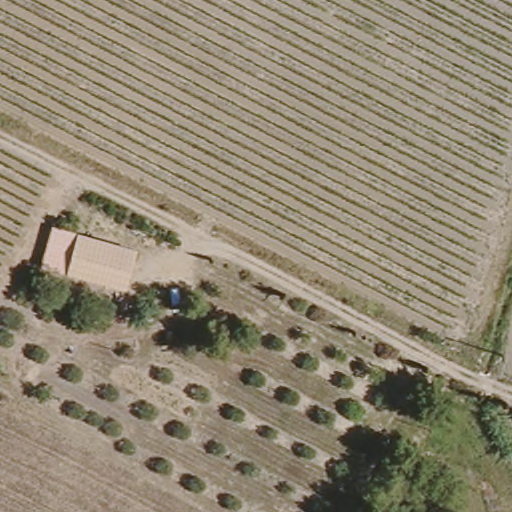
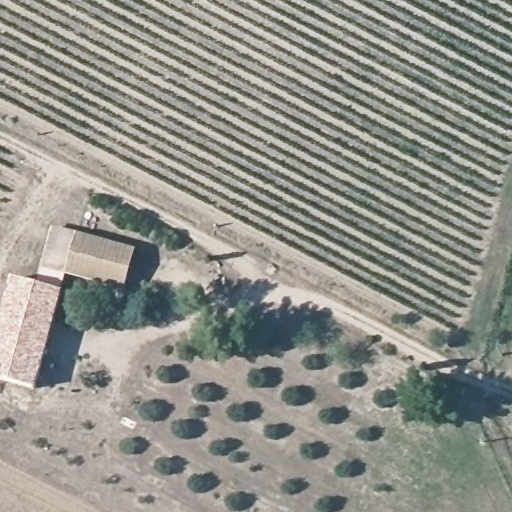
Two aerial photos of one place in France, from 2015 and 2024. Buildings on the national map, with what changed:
unchanged [(122,292),(41,267),(54,225),(135,250),(122,292)]
new [(63,290),(49,347),(36,389),(0,378),(0,313),(11,275),(63,290)]

